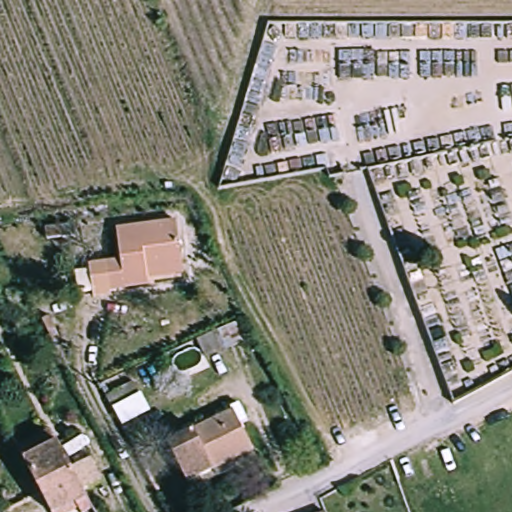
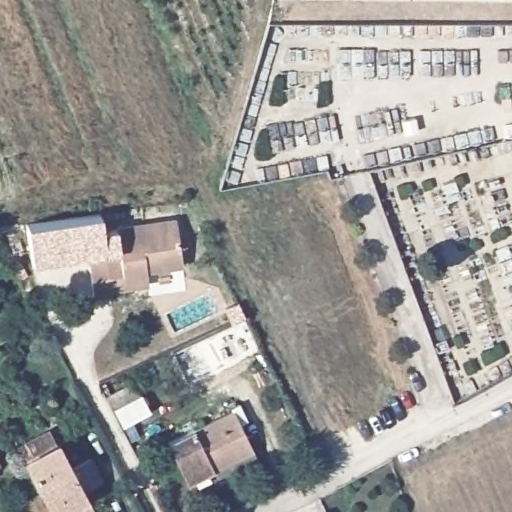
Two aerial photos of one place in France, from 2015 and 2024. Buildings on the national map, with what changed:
new [(103,232),(116,232),(119,252),(120,263),(103,265),(107,292),(92,292),(87,255),(32,262),(27,224),(102,213),(103,232)]
unchanged [(146,279),(147,287),(107,292),(103,265),(120,263),(116,232),(172,223),(179,268),(180,274),(146,279)]
unchanged [(257,451),(192,483),(172,443),(237,410),(257,451)]
unchanged [(85,496),(73,502),(66,489),(44,501),(17,449),(51,431),(85,496)]
unchanged [(2,512),(0,512),(0,508),(2,512)]

